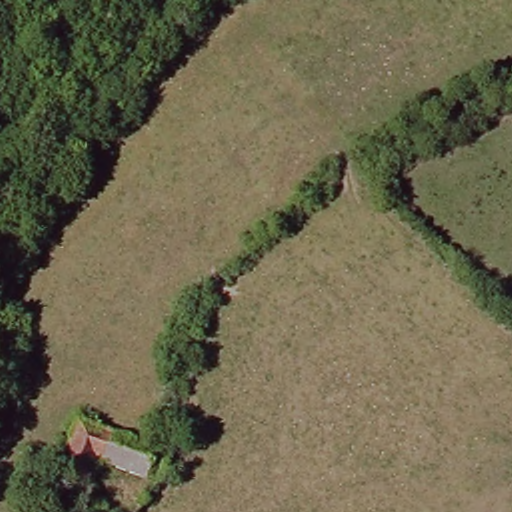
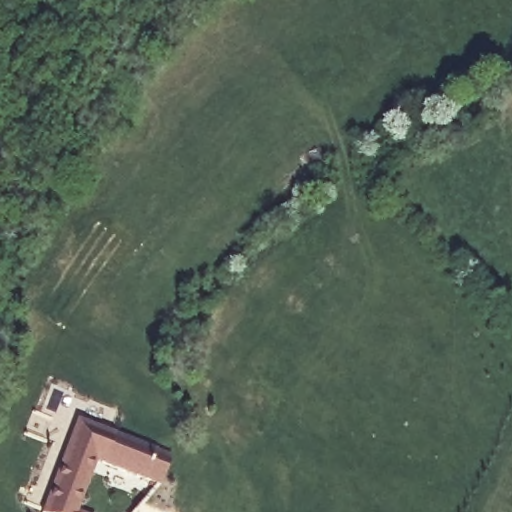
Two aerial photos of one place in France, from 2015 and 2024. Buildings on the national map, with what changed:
new [(160,485),(96,463),(81,512),(37,512),(72,420),(171,455),(160,485)]
demolished [(166,459),(158,486),(96,463),(88,482),(58,471),(76,424),(95,431),(166,459)]

